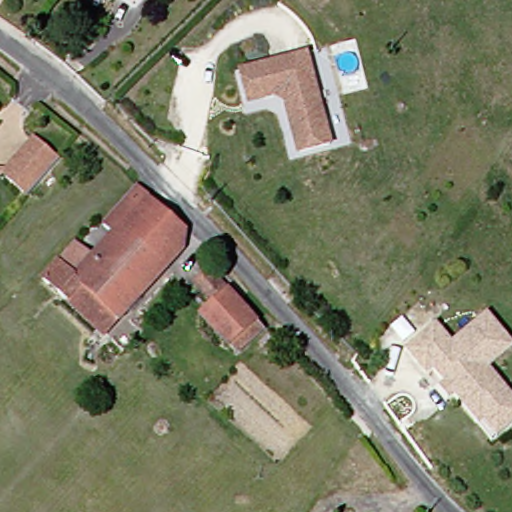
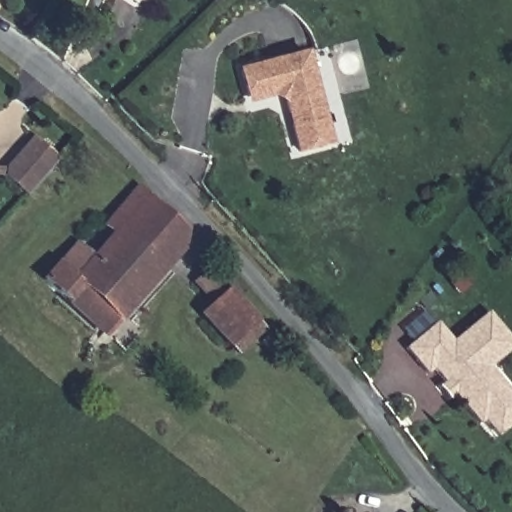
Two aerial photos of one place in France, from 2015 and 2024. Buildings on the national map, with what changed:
unchanged [(308,47),(332,137),(300,146),(286,96),(275,90),(266,92),(265,87),(248,92),(241,64),(308,47)]
unchanged [(7,167),(34,136),(60,159),(27,196),(5,176),(7,167)]
unchanged [(188,250),(111,337),(48,281),(81,242),(98,257),(118,234),(108,225),(141,187),(192,232),(188,250)]
unchanged [(242,357),(234,349),(203,315),(216,303),(197,283),(215,267),(265,321),(272,330),(242,357)]
unchanged [(490,318),(507,342),(496,351),(495,362),(512,386),(512,427),(501,435),(489,417),(484,421),(462,391),(452,377),(442,362),(435,367),(416,341),(448,318),(463,337),(490,318)]
unchanged [(282,343),(273,352),(265,342),(274,334),(282,343)]

